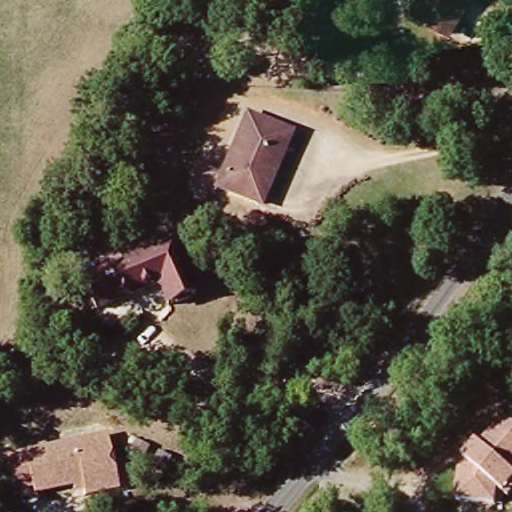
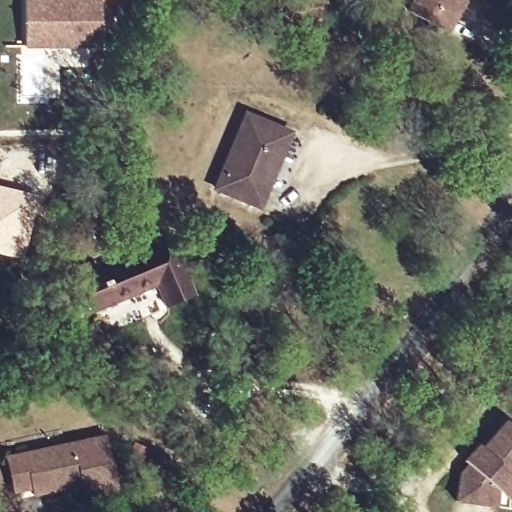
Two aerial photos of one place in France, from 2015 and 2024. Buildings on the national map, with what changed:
new [(22,0),(99,0),(99,47),(22,47),(22,0)]
unchanged [(419,10),(425,0),(469,0),(461,14),(465,16),(455,31),(419,10)]
unchanged [(247,117),(290,133),(262,204),(219,188),(247,117)]
new [(42,196),(23,261),(0,255),(0,185),(42,196)]
unchanged [(85,278),(173,237),(198,289),(170,301),(160,279),(99,308),(85,278)]
unchanged [(499,489),(499,506),(459,499),(461,472),(470,462),(466,459),(479,442),(483,445),(507,419),(512,424),(512,495),(509,498),(499,489)]
unchanged [(5,460),(39,451),(104,437),(116,491),(83,499),(78,486),(33,497),(30,489),(15,494),(5,460)]

